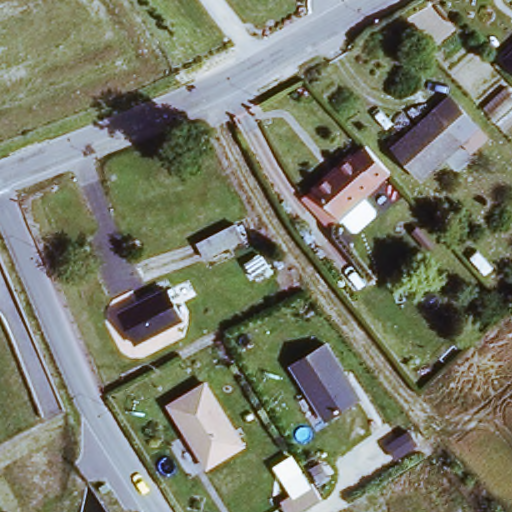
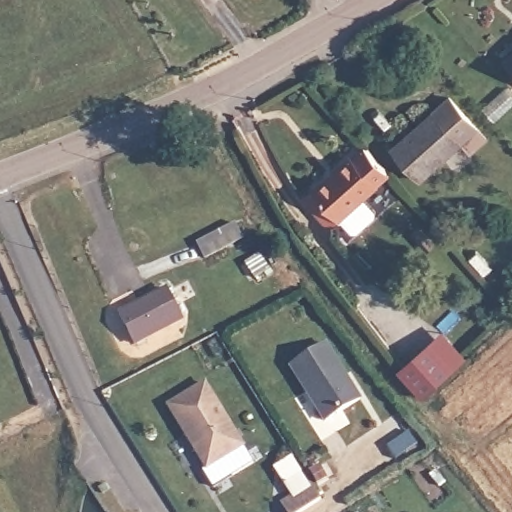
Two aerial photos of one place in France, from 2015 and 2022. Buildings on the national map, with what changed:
unchanged [(512,57),(512,59),(511,57),(512,57)]
unchanged [(462,142),(425,180),(398,151),(435,114),(462,142)]
unchanged [(386,176),(340,219),(314,189),(359,146),(386,176)]
unchanged [(234,225),(241,237),(206,257),(199,245),(234,225)]
unchanged [(270,266),(260,272),(252,258),(260,253),(265,250),(273,265),(270,266)]
unchanged [(162,285),(180,314),(135,341),(117,313),(162,285)]
unchanged [(178,338),(145,358),(138,347),(170,326),(178,338)]
new [(441,327),(466,353),(455,363),(424,393),(400,366),(430,337),(441,327)]
unchanged [(335,423),(298,370),(332,347),(368,400),(335,423)]
unchanged [(222,467),(205,443),(207,441),(202,433),(198,436),(179,408),(213,385),(255,444),(222,467)]
unchanged [(309,512),(302,501),(330,483),(339,496),(316,512),(309,512)]

